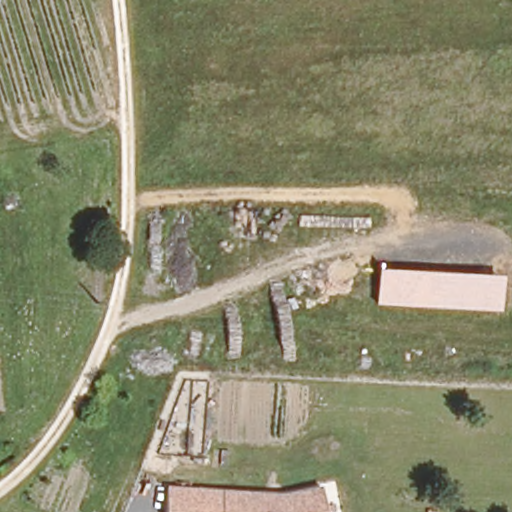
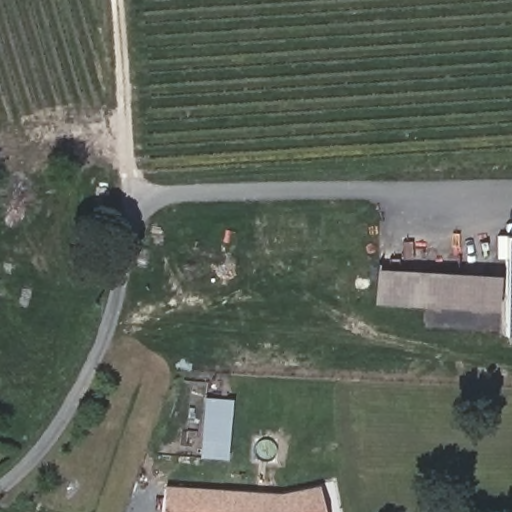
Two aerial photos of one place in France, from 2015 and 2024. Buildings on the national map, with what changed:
new [(510,259),(502,258),(502,237),(510,237),(512,237),(512,337),(510,337),(510,259)]
unchanged [(378,305),(380,270),(505,276),(502,312),(378,305)]
new [(228,460),(201,457),(205,397),(233,400),(228,460)]
unchanged [(282,494),(317,488),(323,512),(165,512),(166,488),(282,494)]

